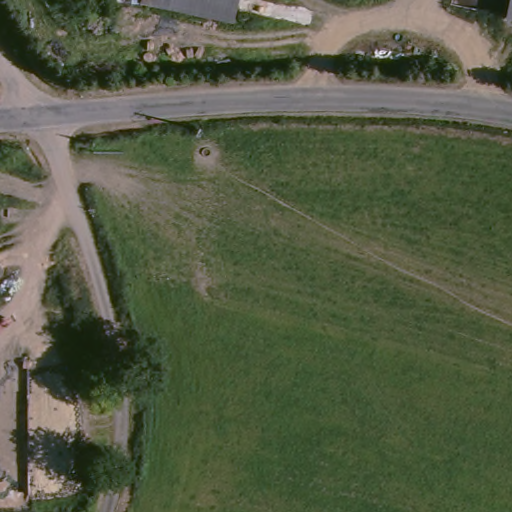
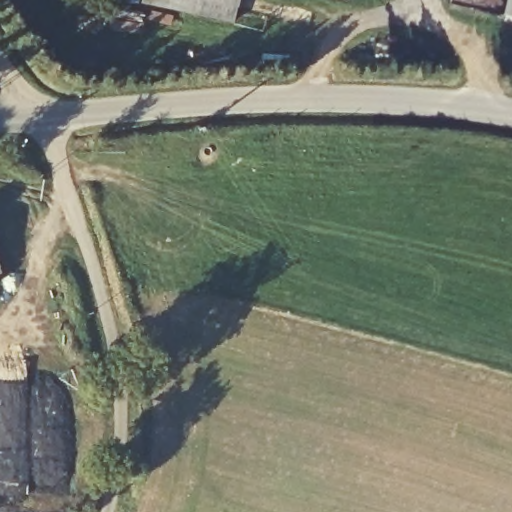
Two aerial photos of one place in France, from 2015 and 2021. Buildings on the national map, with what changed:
unchanged [(237,18),(143,0),(240,0),(237,18)]
unchanged [(0,274),(0,265),(3,272),(0,274)]

